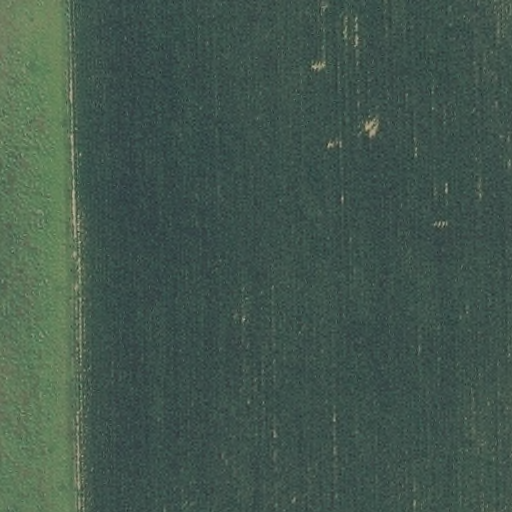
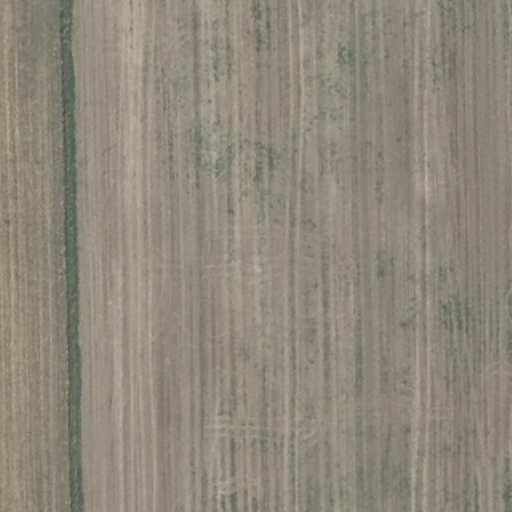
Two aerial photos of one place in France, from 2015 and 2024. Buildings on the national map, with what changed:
[]

